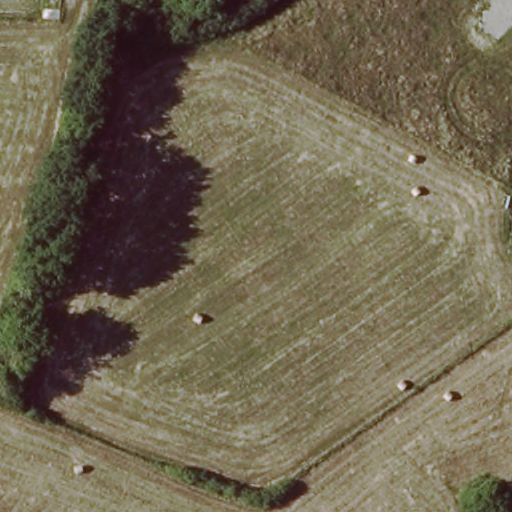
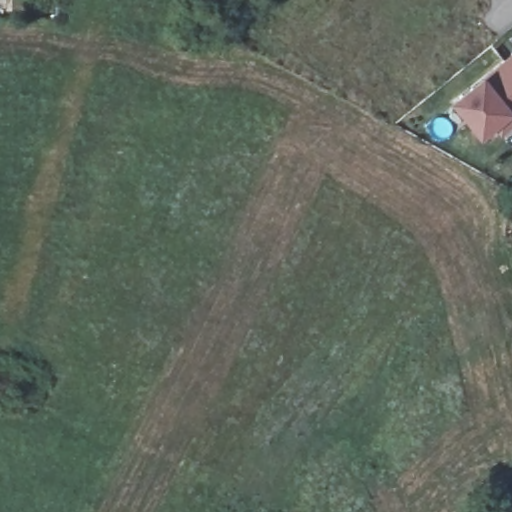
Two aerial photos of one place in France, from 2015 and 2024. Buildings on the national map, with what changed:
new [(490,130),(476,141),(451,108),(512,60),(512,125),(496,138),(490,130)]

